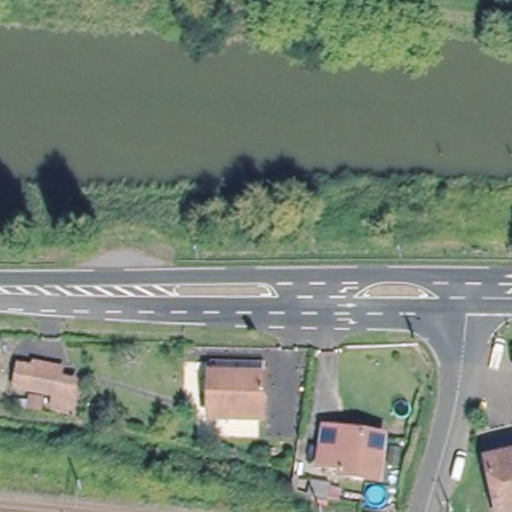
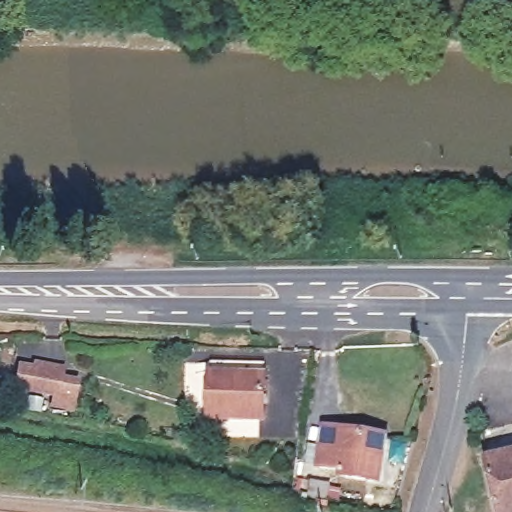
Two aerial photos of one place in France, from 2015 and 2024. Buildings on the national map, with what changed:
unchanged [(45,367),(43,378),(77,382),(75,411),(24,401),(26,391),(12,387),(16,365),(45,367)]
unchanged [(210,366),(265,365),(266,422),(210,422),(210,366)]
unchanged [(377,481),(333,475),(334,468),(315,465),(320,427),(382,435),(377,481)]
unchanged [(491,461),(512,456),(512,512),(502,512),(491,461)]

